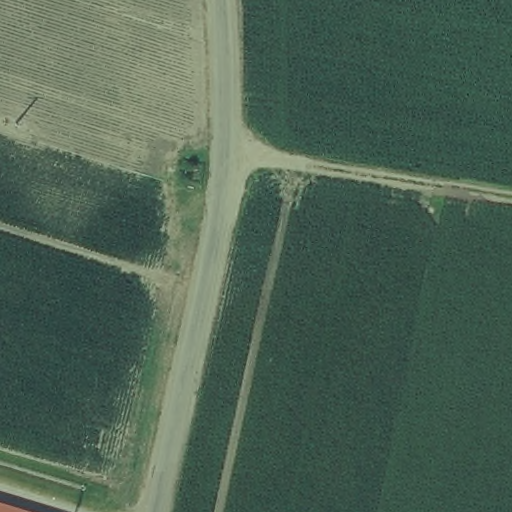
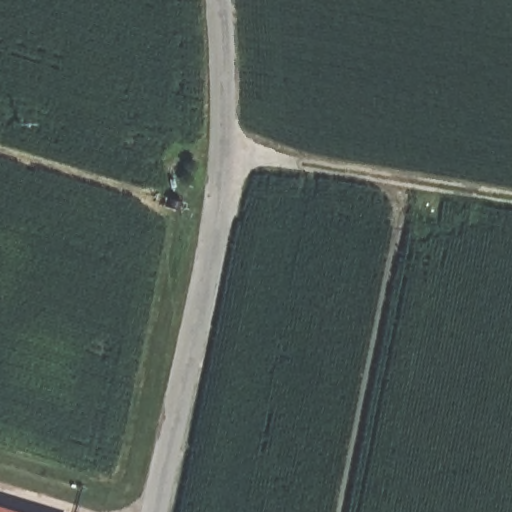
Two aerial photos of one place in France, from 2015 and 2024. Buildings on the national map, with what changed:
unchanged [(0,512),(0,506),(20,512),(0,512)]

